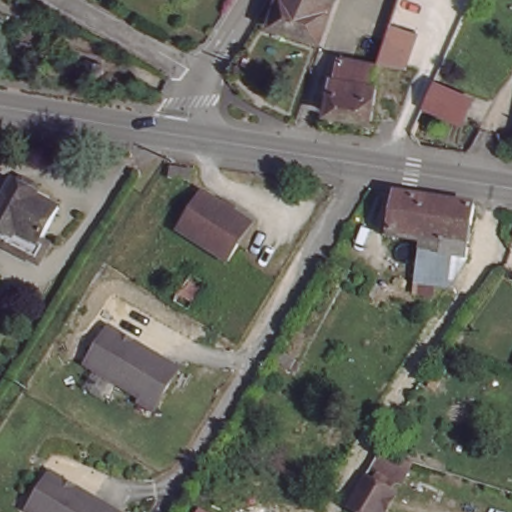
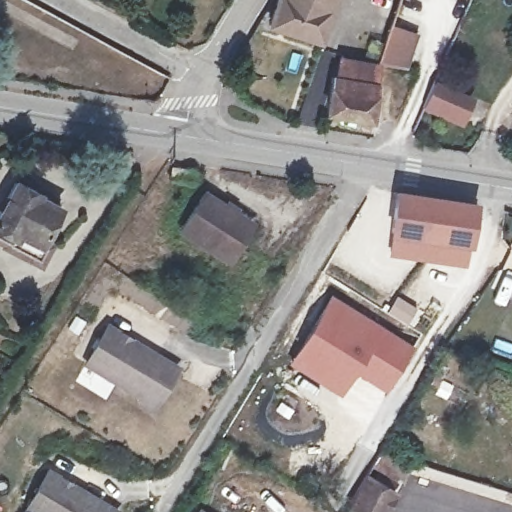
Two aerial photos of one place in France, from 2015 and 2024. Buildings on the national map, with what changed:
unchanged [(318,42),(268,26),(278,0),(332,0),(318,42)]
unchanged [(376,64),(377,64),(372,81),(377,82),(369,119),(326,112),(335,74),(338,74),(341,56),(376,64)]
unchanged [(473,97),(461,126),(422,107),(433,80),(473,97)]
unchanged [(17,180),(22,182),(28,177),(33,180),(33,189),(36,191),(35,195),(59,207),(42,239),(38,244),(19,232),(13,240),(0,232),(0,211),(17,180)]
unchanged [(259,222),(236,262),(181,231),(208,192),(259,222)]
unchanged [(421,250),(423,241),(390,236),(396,196),(475,207),(467,256),(421,250)]
unchanged [(52,245),(38,267),(0,245),(0,232),(13,240),(19,232),(38,244),(42,239),(52,245)]
new [(331,293),(412,345),(383,392),(358,377),(344,398),(289,365),(331,293)]
new [(397,294),(418,307),(408,325),(386,312),(397,294)]
unchanged [(108,322),(176,364),(150,406),(137,397),(140,393),(85,359),(108,322)]
demolished [(384,441),(415,457),(396,488),(366,472),(384,441)]
new [(383,450),(409,465),(400,482),(372,467),(383,450)]
unchanged [(118,509),(117,512),(40,512),(27,505),(50,467),(118,509)]
unchanged [(383,512),(367,512),(349,502),(366,472),(396,488),(383,512)]
unchanged [(197,512),(200,508),(205,512),(197,512)]

